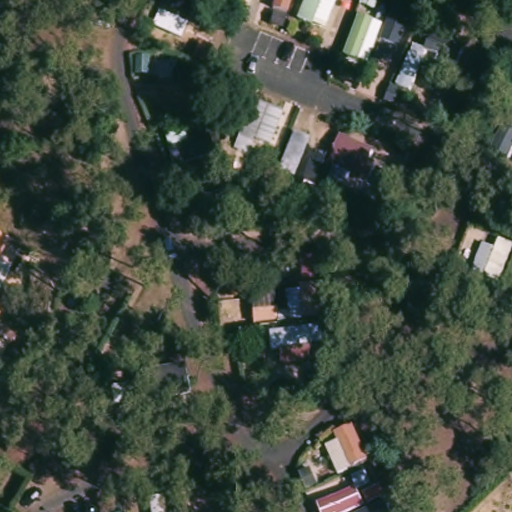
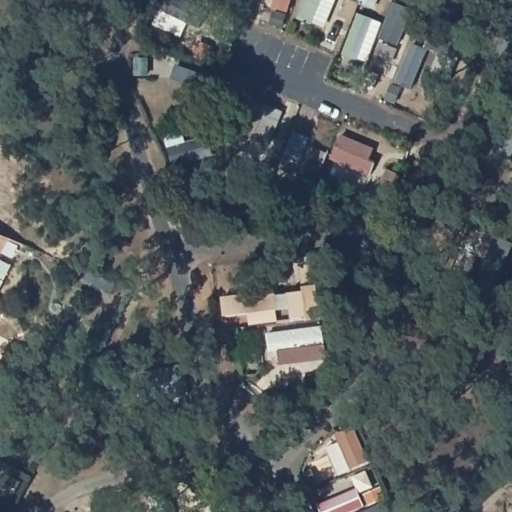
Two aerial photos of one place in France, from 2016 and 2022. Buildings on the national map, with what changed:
unchanged [(357,2),(352,0),(358,0),(357,2)]
unchanged [(376,7),(363,2),(365,0),(378,0),(376,7)]
unchanged [(283,16),(279,29),(267,24),(272,12),(283,16)]
unchanged [(196,45),(191,56),(167,47),(172,35),(196,45)]
unchanged [(207,47),(202,61),(192,57),(199,44),(207,47)]
unchanged [(147,61),(144,75),(133,73),(136,60),(147,61)]
unchanged [(398,89),(393,103),(383,99),(390,85),(398,89)]
unchanged [(273,168),(267,181),(258,177),(263,165),(273,168)]
unchanged [(322,172),(316,185),(306,181),(312,168),(322,172)]
unchanged [(400,175),(392,191),(383,187),(390,171),(400,175)]
unchanged [(7,232),(0,251),(0,229),(7,232)]
unchanged [(312,259),(313,275),(303,276),(302,260),(312,259)]
unchanged [(476,281),(494,288),(492,295),(473,287),(476,281)]
unchanged [(302,293),(306,321),(293,323),(290,295),(302,293)]
unchanged [(272,298),(273,310),(251,312),(250,300),(272,298)]
unchanged [(0,310),(0,304),(2,305),(0,310)]
unchanged [(320,375),(321,385),(309,386),(308,375),(320,375)]
unchanged [(311,470),(316,485),(308,488),(302,473),(311,470)]
unchanged [(381,490),(386,499),(370,506),(366,496),(381,490)]

